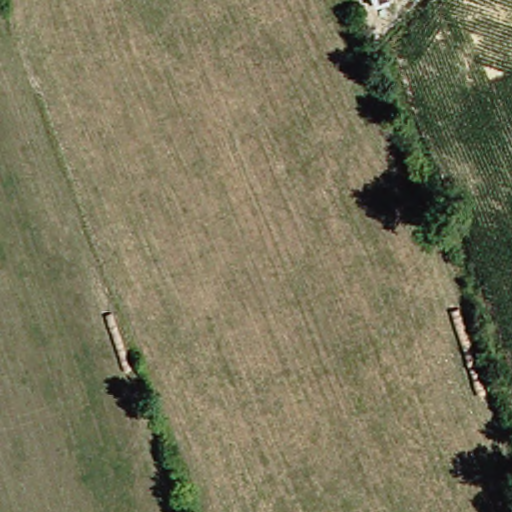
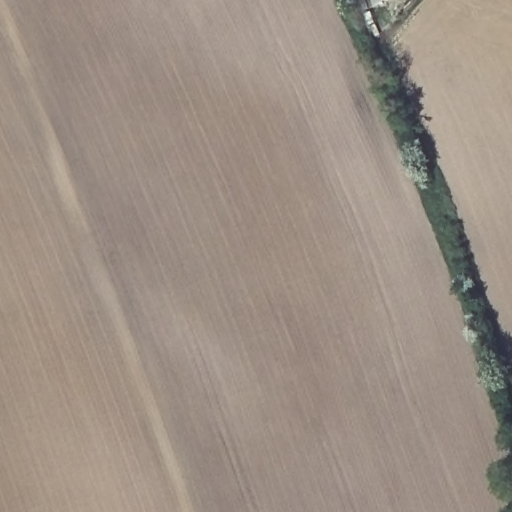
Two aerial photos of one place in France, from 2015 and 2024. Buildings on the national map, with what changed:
unchanged [(383,0),(391,0),(395,10),(389,14),(383,0)]

